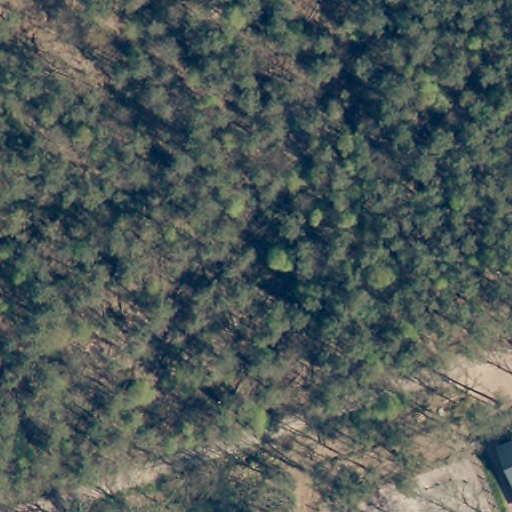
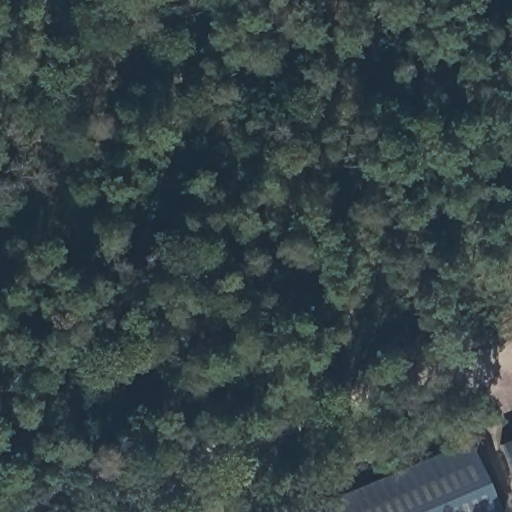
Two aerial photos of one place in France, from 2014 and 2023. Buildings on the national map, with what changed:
unchanged [(498,446),(512,440),(512,475),(498,446)]
new [(496,512),(305,512),(467,445),(496,512)]

